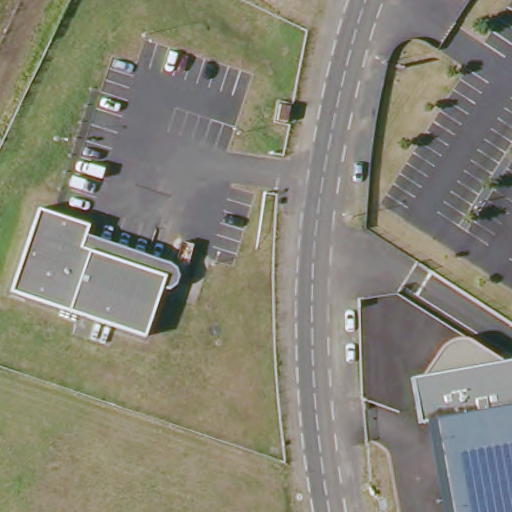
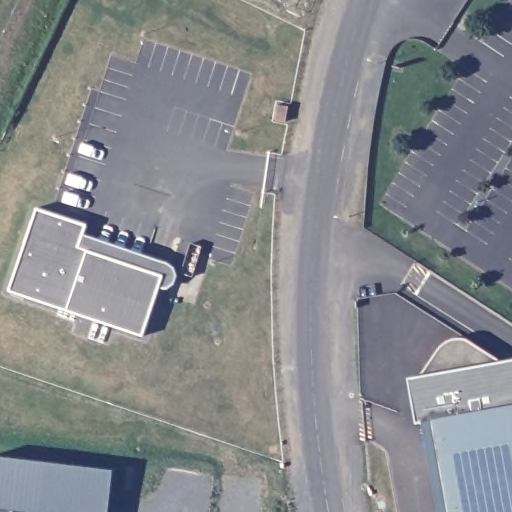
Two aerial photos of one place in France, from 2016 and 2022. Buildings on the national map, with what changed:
unchanged [(283,97),(298,102),(294,118),(278,114),(283,97)]
unchanged [(40,203),(91,219),(84,242),(168,270),(148,332),(13,286),(40,203)]
unchanged [(416,423),(408,378),(421,376),(429,363),(441,347),(449,341),(463,339),(472,342),(501,361),(512,360),(512,512),(439,512),(424,422),(416,423)]
new [(109,512),(0,512),(0,459),(114,473),(109,512)]

